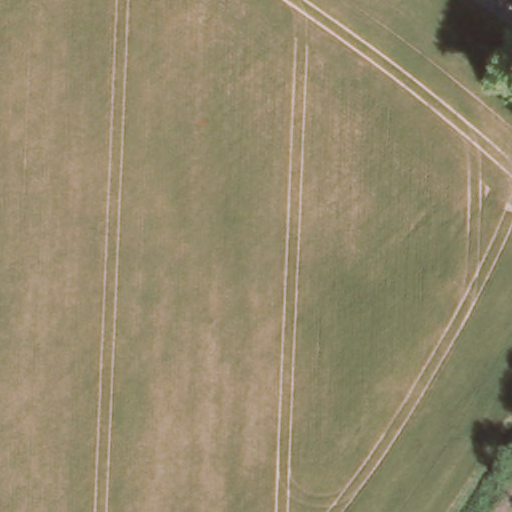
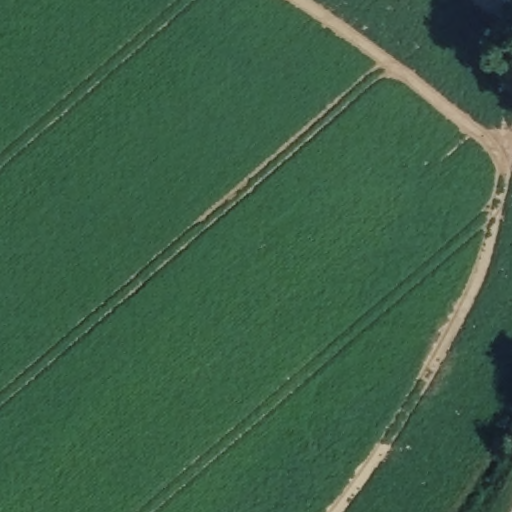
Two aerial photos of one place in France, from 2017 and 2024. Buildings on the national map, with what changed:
[]

